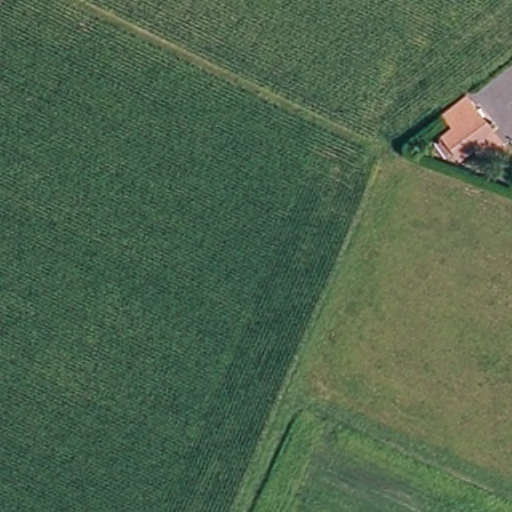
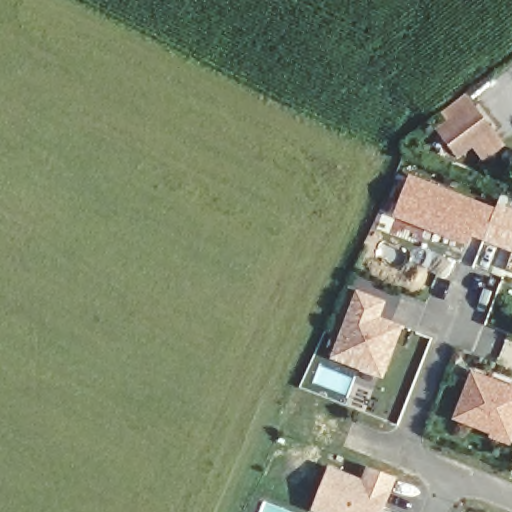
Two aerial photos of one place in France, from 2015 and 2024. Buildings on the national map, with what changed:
new [(474,150),(459,161),(452,151),(443,157),(435,145),(443,138),(439,133),(451,124),(442,114),(467,94),(507,146),(484,164),(474,150)]
demolished [(476,131),(489,150),(455,173),(442,154),(476,131)]
new [(496,209),(498,203),(512,209),(512,254),(472,239),(469,246),(393,219),(410,177),(496,209)]
new [(388,302),(381,319),(404,327),(383,381),(330,360),(358,291),(388,302)]
new [(511,387),(512,385),(512,448),(489,441),(491,435),(454,422),(472,372),(511,387)]
new [(362,481),(367,468),(397,480),(385,512),(312,512),(330,467),(362,481)]

